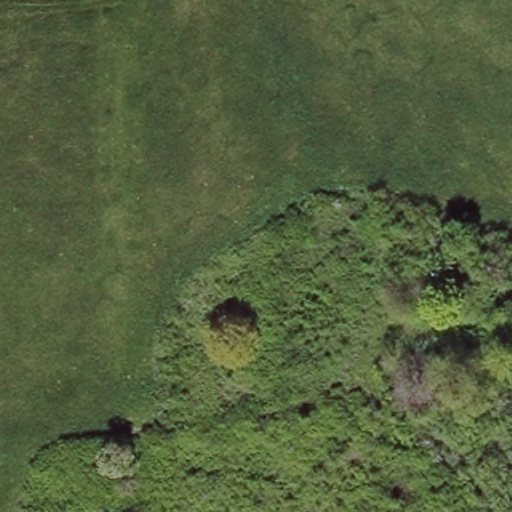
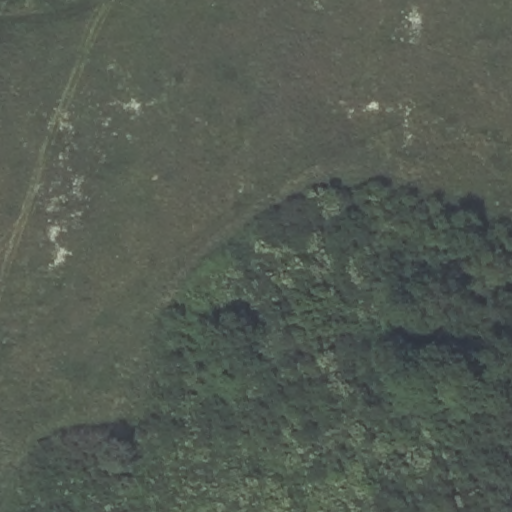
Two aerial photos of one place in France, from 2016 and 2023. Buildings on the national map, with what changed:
[]

